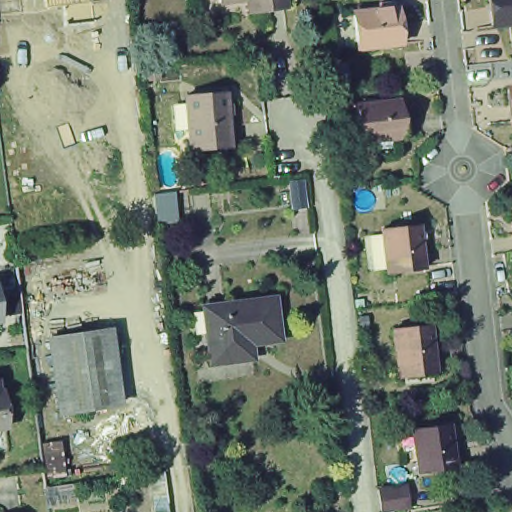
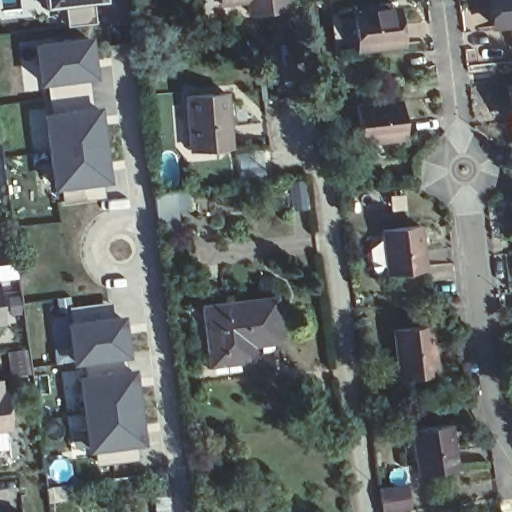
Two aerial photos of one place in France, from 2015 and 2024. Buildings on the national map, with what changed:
new [(92,19),(63,23),(61,3),(45,5),(44,0),(90,0),(92,19)]
unchanged [(287,4),(251,9),(250,0),(286,0),(287,4)]
unchanged [(512,31),(495,33),(491,0),(512,0),(512,31)]
unchanged [(401,52),(357,58),(353,20),(396,15),(401,52)]
new [(92,37),(97,79),(90,80),(95,110),(103,108),(112,185),(105,186),(107,199),(64,205),(62,193),(53,194),(40,115),(53,113),(50,86),(42,87),(36,43),(92,37)]
unchanged [(230,143),(192,147),(187,92),(225,88),(230,143)]
unchanged [(512,126),(509,126),(505,88),(512,88),(512,126)]
unchanged [(403,145),(360,149),(356,111),(400,106),(403,145)]
unchanged [(294,207),(290,180),(300,179),(303,179),(307,206),(304,206),(294,207)]
unchanged [(177,210),(157,213),(154,191),(175,189),(177,210)]
unchanged [(512,226),(512,238),(510,238),(510,226),(512,226)]
unchanged [(424,273),(387,277),(383,234),(420,230),(424,273)]
unchanged [(275,340),(235,346),(235,361),(206,364),(200,308),(270,299),(275,340)]
new [(113,302),(115,317),(127,316),(132,359),(127,360),(128,369),(138,369),(147,446),(138,447),(140,461),(97,466),(95,453),(90,453),(82,378),(86,377),(85,366),(73,368),(68,322),(73,321),(72,308),(113,302)]
unchanged [(2,321),(0,322),(0,307),(2,321)]
unchanged [(432,366),(395,371),(390,326),(427,322),(432,366)]
demolished [(120,410),(60,418),(52,344),(111,336),(120,410)]
unchanged [(4,429),(0,430),(0,397),(4,429)]
unchanged [(451,463),(414,468),(411,447),(400,449),(397,428),(408,426),(445,421),(451,463)]
unchanged [(388,512),(382,512),(379,489),(407,484),(410,508),(388,512)]

